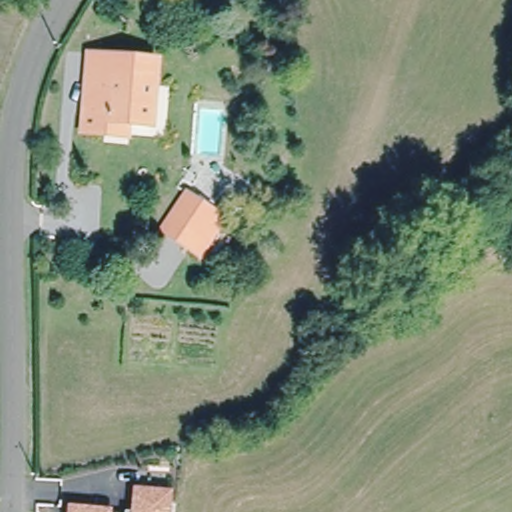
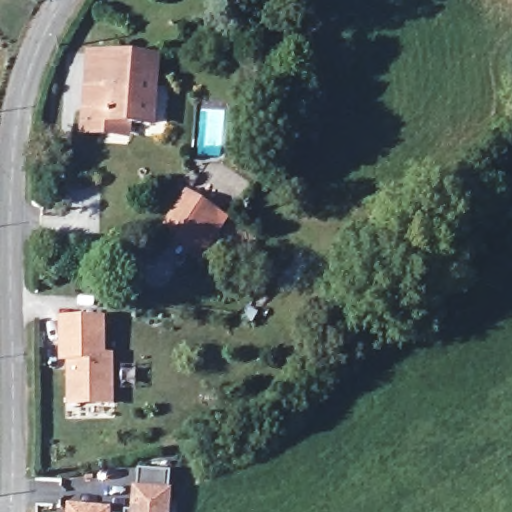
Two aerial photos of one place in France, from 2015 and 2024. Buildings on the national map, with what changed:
unchanged [(105,133),(83,131),(88,84),(92,53),(111,55),(156,60),(150,124),(128,122),(127,135),(105,133)]
unchanged [(200,253),(190,246),(163,229),(186,193),(214,211),(224,218),(200,253)]
new [(105,318),(106,354),(115,354),(115,407),(67,406),(66,362),(59,362),(60,318),(105,318)]
unchanged [(139,511),(140,488),(174,491),(172,512),(130,512),(130,510),(139,511)]
unchanged [(113,512),(75,512),(75,507),(113,511),(113,512)]

